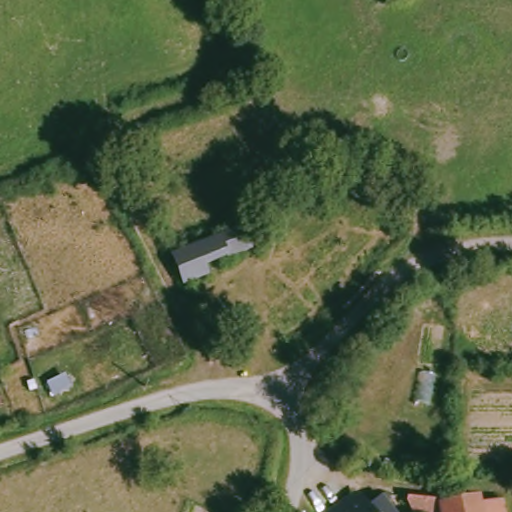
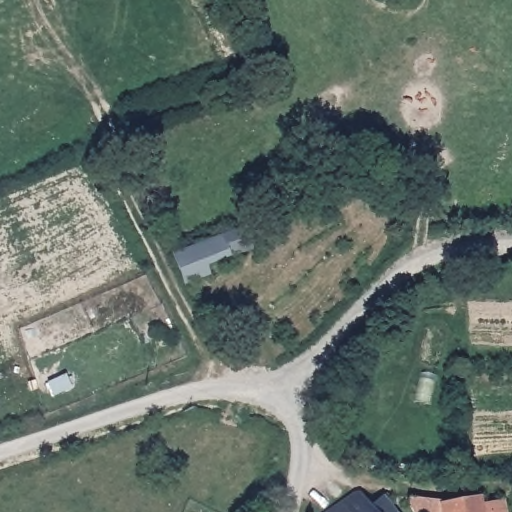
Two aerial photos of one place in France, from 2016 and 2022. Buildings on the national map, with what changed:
unchanged [(206,267),(208,278),(188,286),(181,270),(176,257),(221,240),(228,258),(206,267)]
unchanged [(378,485),(389,501),(403,490),(404,497),(403,507),(404,512),(337,512),(339,511),(378,485)]
unchanged [(481,512),(404,512),(403,507),(404,497),(442,503),(479,499),(480,506),(481,512)]
unchanged [(481,512),(480,506),(504,504),(505,512),(481,512)]

